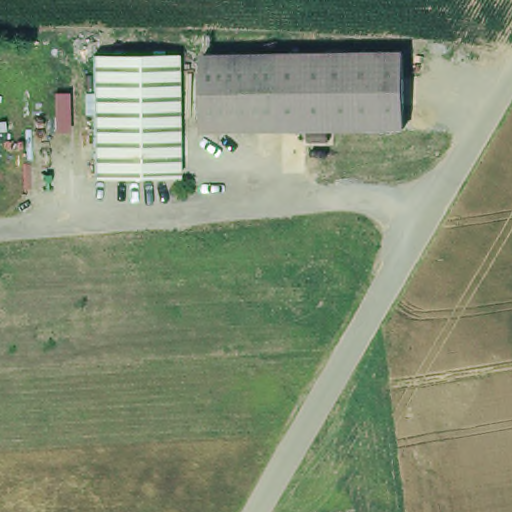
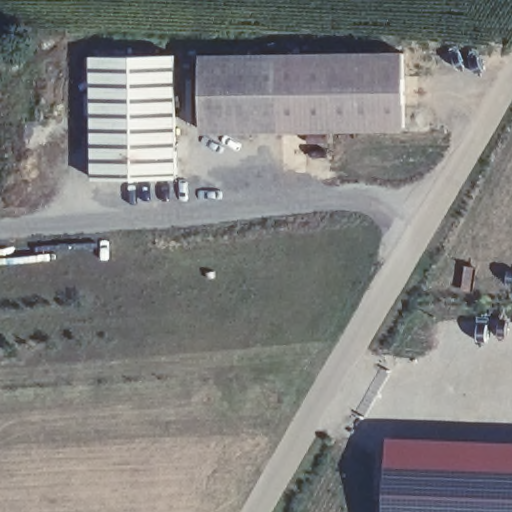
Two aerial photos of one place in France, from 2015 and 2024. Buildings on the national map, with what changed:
unchanged [(181,52),(187,175),(105,179),(102,115),(95,115),(94,95),(101,95),(99,57),(181,52)]
unchanged [(401,54),(406,126),(278,132),(274,60),(401,54)]
unchanged [(203,136),(199,62),(274,60),(278,132),(203,136)]
new [(379,512),(383,431),(512,439),(512,512),(379,512)]

